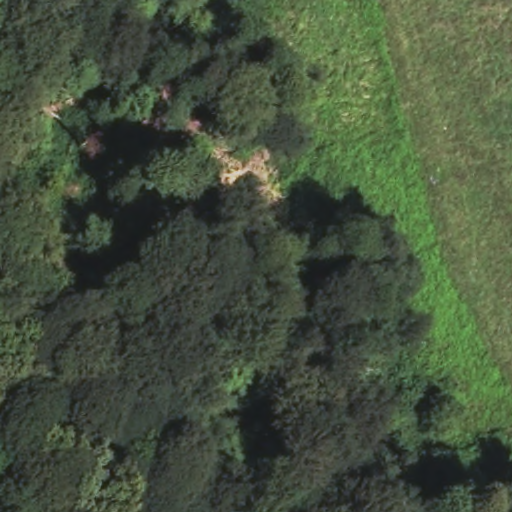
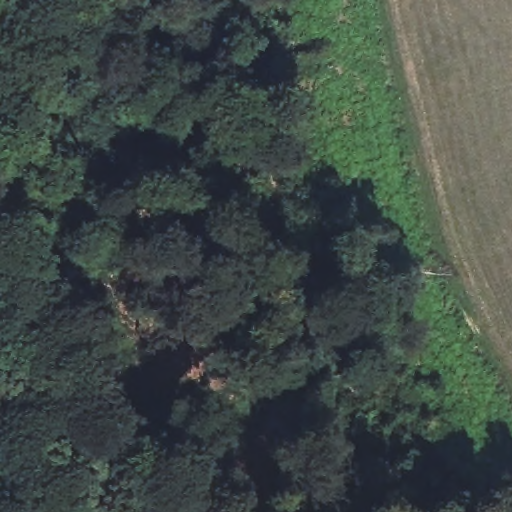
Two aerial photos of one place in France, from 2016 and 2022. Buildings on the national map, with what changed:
[]

